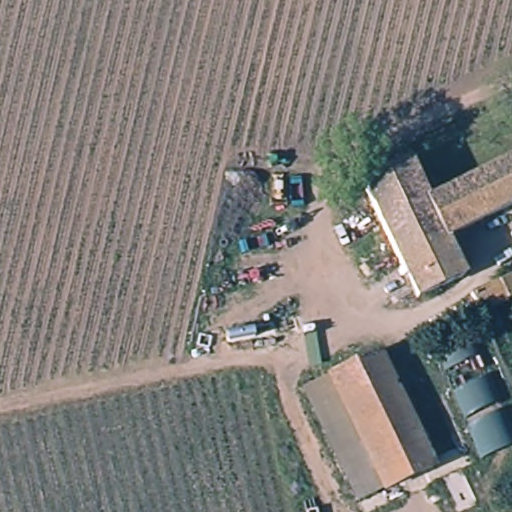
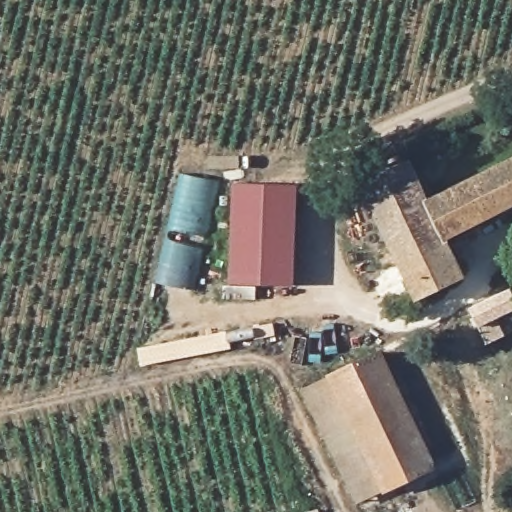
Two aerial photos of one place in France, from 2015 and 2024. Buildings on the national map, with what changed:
unchanged [(445,238),(462,274),(414,297),(359,182),(406,160),(425,198),(512,155),(512,205),(445,238)]
new [(218,181),(193,290),(155,283),(180,172),(218,181)]
new [(233,183),(297,185),(294,286),(230,283),(233,183)]
unchanged [(474,314),(466,296),(512,275),(512,297),(474,314)]
demolished [(489,461),(446,359),(483,344),(512,411),(512,451),(489,461)]
unchanged [(443,463),(357,505),(302,388),(381,348),(443,463)]

